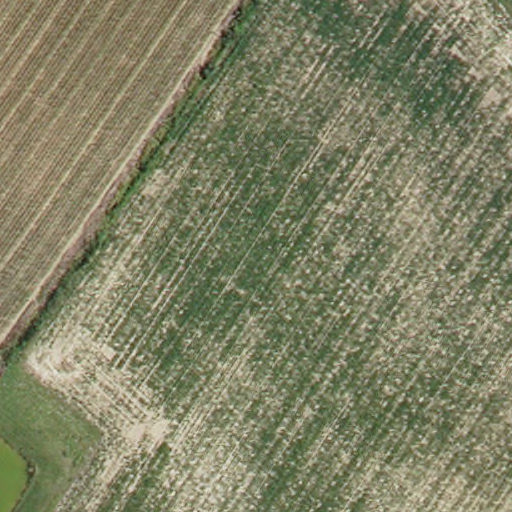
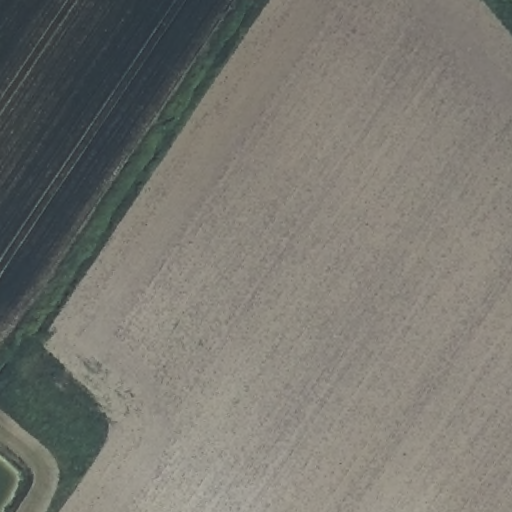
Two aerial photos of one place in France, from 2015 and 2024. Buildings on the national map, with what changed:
[]

